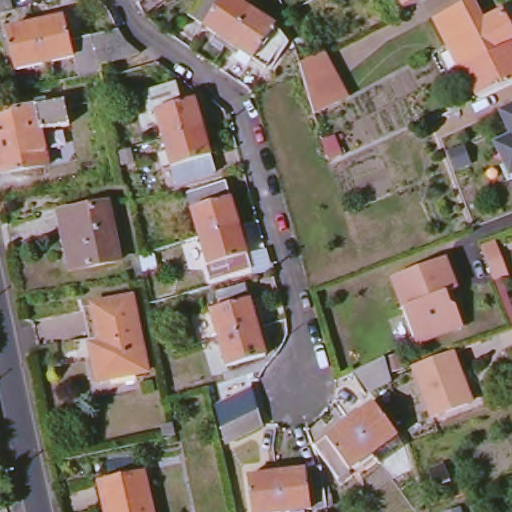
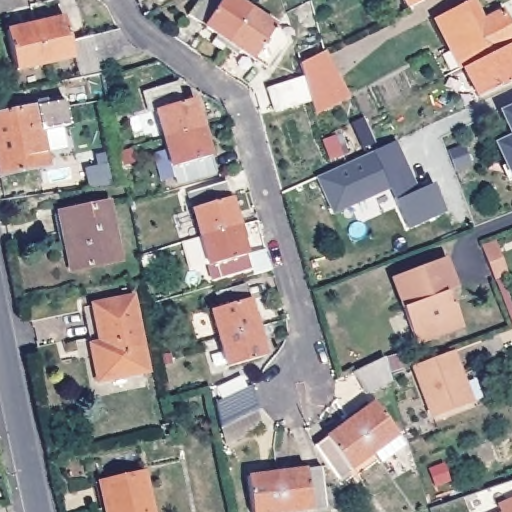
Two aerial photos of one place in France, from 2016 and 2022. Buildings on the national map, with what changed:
unchanged [(25,7),(25,9),(0,13),(0,0),(23,0),(25,7)]
unchanged [(191,0),(237,0),(246,6),(228,32),(223,40),(222,41),(221,44),(218,48),(207,40),(212,32),(182,13),(191,0)]
unchanged [(399,5),(397,0),(408,0),(399,5)]
unchanged [(463,0),(470,0),(477,16),(496,8),(509,36),(504,39),(458,62),(454,64),(431,14),(463,0)]
unchanged [(268,28),(282,37),(263,65),(235,47),(232,51),(221,44),(222,41),(223,40),(228,32),(246,6),(271,23),(268,28)]
unchanged [(96,63),(99,70),(79,75),(71,54),(43,61),(35,30),(33,23),(61,16),(69,40),(88,36),(116,27),(124,39),(138,51),(96,63)]
unchanged [(3,31),(33,23),(35,30),(43,61),(13,70),(3,31)]
unchanged [(472,92),(458,62),(504,39),(512,56),(512,74),(478,90),(472,92)]
unchanged [(300,62),(297,50),(318,40),(337,106),(314,113),(300,62)]
unchanged [(160,110),(154,111),(148,90),(181,81),(186,102),(198,99),(204,126),(203,126),(167,136),(160,110)]
unchanged [(62,96),(66,121),(41,125),(47,164),(0,173),(0,108),(62,96)]
unchanged [(496,145),(510,140),(497,110),(512,103),(512,170),(508,171),(496,145)]
unchanged [(203,126),(204,126),(217,171),(180,182),(167,136),(203,126)]
unchanged [(326,149),(323,139),(335,135),(340,155),(328,158),(326,149)]
unchanged [(463,140),(471,160),(457,165),(449,146),(463,140)]
new [(419,190),(434,184),(447,213),(409,229),(396,201),(390,189),(333,215),(316,177),(396,141),(419,190)]
unchanged [(206,244),(202,245),(190,201),(229,191),(241,235),(206,244)]
unchanged [(111,200),(121,257),(69,267),(58,209),(111,200)]
unchanged [(253,278),(213,288),(202,245),(206,244),(241,235),(253,278)]
unchanged [(413,341),(389,276),(442,256),(454,287),(447,290),(452,304),(460,325),(413,341)]
unchanged [(209,303),(252,292),(263,334),(231,342),(220,345),(209,303)]
unchanged [(130,300),(145,374),(105,381),(90,307),(130,300)]
unchanged [(231,342),(263,334),(271,363),(227,375),(220,345),(231,342)]
unchanged [(469,404),(432,418),(412,365),(453,350),(465,382),(473,403),(469,404)]
unchanged [(353,375),(385,359),(391,378),(393,385),(364,397),(353,375)]
unchanged [(509,371),(512,370),(512,380),(509,371)]
unchanged [(222,423),(221,422),(213,410),(247,388),(255,401),(265,415),(231,437),(222,423)]
unchanged [(398,436),(376,455),(367,443),(347,417),(358,409),(360,412),(372,403),(398,436)]
unchanged [(320,456),(313,448),(339,429),(336,425),(347,417),(367,443),(376,455),(340,483),(320,456)]
unchanged [(331,501),(286,511),(276,472),(322,461),(331,501)]
unchanged [(276,472),(286,511),(283,512),(256,512),(249,479),(276,472)]
unchanged [(107,512),(101,483),(145,473),(154,512),(107,512)]

